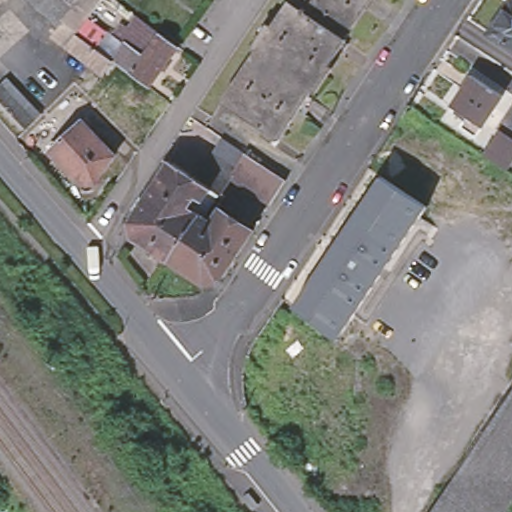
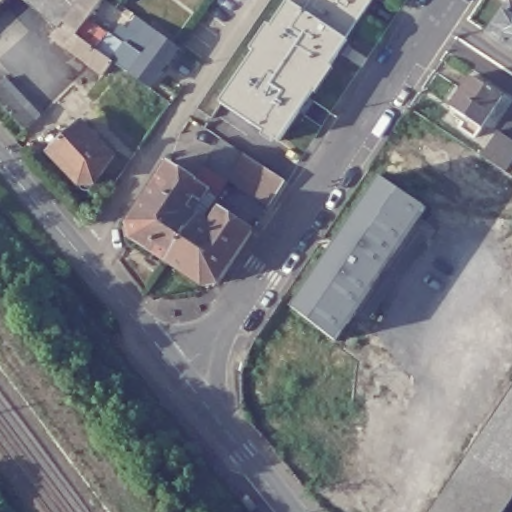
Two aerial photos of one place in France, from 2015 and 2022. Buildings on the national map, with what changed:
unchanged [(4,0),(0,4),(0,0),(4,0)]
unchanged [(73,4),(69,0),(105,0),(87,24),(105,37),(96,49),(115,63),(127,44),(114,34),(122,24),(131,30),(138,20),(160,37),(177,50),(150,89),(130,75),(120,67),(110,80),(105,76),(55,39),(52,36),(73,4)]
unchanged [(284,0),(369,0),(344,38),(345,41),(277,141),(219,102),(287,2),(284,0)]
unchanged [(506,0),(512,0),(512,39),(490,24),(506,0)]
unchanged [(462,110),(446,99),(467,68),(498,90),(469,131),(454,121),(462,110)]
unchanged [(0,101),(0,74),(32,107),(18,121),(0,101)]
unchanged [(47,154),(79,124),(112,157),(95,184),(77,186),(47,154)]
unchanged [(493,159),(482,151),(498,129),(510,137),(512,139),(512,159),(506,168),(493,159)]
unchanged [(272,194),(267,201),(227,176),(215,194),(205,187),(207,185),(193,176),(220,135),(244,151),(255,159),(268,167),(282,177),(272,194)]
unchanged [(129,234),(126,218),(167,158),(193,176),(207,185),(205,187),(199,197),(193,194),(187,203),(197,210),(165,258),(129,234)]
unchanged [(294,305),(382,175),(427,208),(337,340),(294,305)]
unchanged [(197,210),(202,212),(207,216),(215,205),(250,226),(215,279),(212,280),(201,282),(165,258),(197,210)]
unchanged [(512,391),(512,494),(500,512),(431,512),(512,391)]

